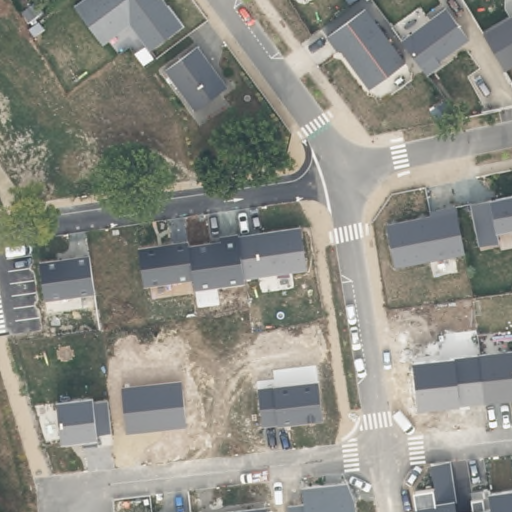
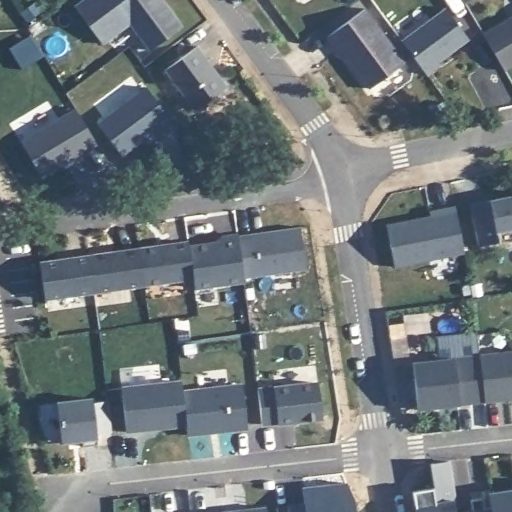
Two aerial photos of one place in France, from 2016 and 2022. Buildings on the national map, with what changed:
unchanged [(82,0),(160,0),(179,26),(150,50),(131,25),(102,47),(74,6),(82,0)]
unchanged [(470,44),(427,76),(401,41),(442,9),(470,44)]
unchanged [(404,65),(370,92),(328,37),(362,11),(404,65)]
unchanged [(482,34),(512,16),(512,69),(506,72),(482,34)]
unchanged [(165,70),(196,47),(224,85),(194,110),(165,70)]
new [(145,85),(171,119),(121,157),(97,121),(145,85)]
new [(74,107),(96,145),(42,177),(20,140),(74,107)]
unchanged [(496,240),(476,245),(470,204),(512,196),(512,229),(496,232),(496,240)]
unchanged [(383,224),(428,215),(427,211),(456,205),(466,253),(393,270),(383,224)]
unchanged [(40,261),(190,240),(191,245),(238,239),(237,235),(299,226),(304,269),(244,278),(245,282),(195,290),(193,280),(46,300),(40,261)]
unchanged [(412,362),(512,351),(512,398),(418,408),(412,362)]
unchanged [(127,433),(123,388),(180,380),(186,426),(127,433)]
new [(186,426),(181,389),(242,381),(248,430),(188,436),(186,426)]
unchanged [(262,425),(258,388),(318,382),(322,420),(262,425)]
unchanged [(96,434),(98,445),(80,447),(78,440),(62,442),(57,402),(91,398),(92,402),(106,400),(108,431),(96,434)]
unchanged [(432,488),(430,464),(449,461),(458,512),(418,512),(415,492),(432,488)]
unchanged [(304,503),(303,488),(349,483),(353,512),(291,512),(291,505),(304,503)]
unchanged [(472,500),(482,499),(480,492),(512,488),(512,512),(463,512),(472,510),(472,500)]
unchanged [(267,512),(208,512),(266,506),(267,512)]

